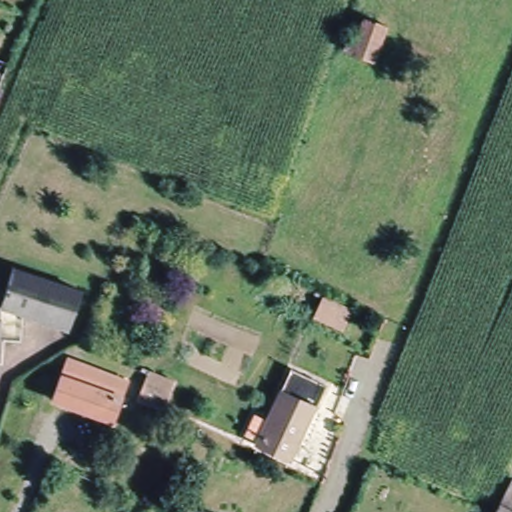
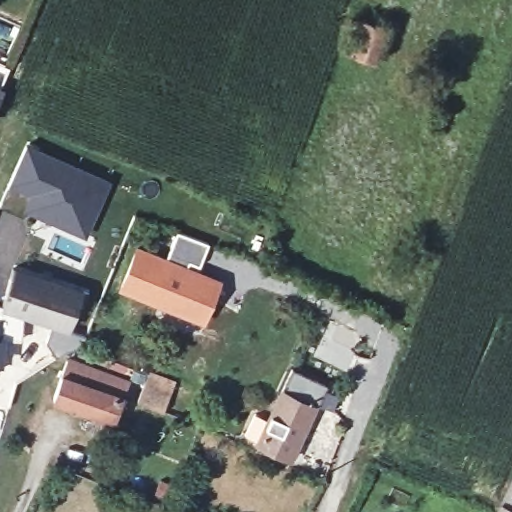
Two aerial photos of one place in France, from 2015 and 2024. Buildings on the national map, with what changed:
unchanged [(369,57),(338,45),(343,33),(351,37),(360,15),(382,23),(369,57)]
unchanged [(0,71),(0,56),(5,59),(0,71)]
new [(69,229),(28,211),(24,217),(0,207),(11,185),(28,147),(110,183),(97,212),(86,237),(69,229)]
new [(136,245),(165,256),(176,230),(210,243),(200,268),(223,277),(204,322),(118,289),(136,245)]
unchanged [(18,313),(17,328),(16,329),(16,340),(0,338),(0,297),(10,268),(76,292),(63,330),(18,313)]
unchanged [(351,311),(343,328),(316,317),(318,311),(299,302),(302,293),(322,302),(324,299),(351,311)]
unchanged [(53,401),(66,361),(128,382),(115,422),(109,438),(87,431),(92,415),(53,401)]
unchanged [(290,459),(257,444),(292,371),(325,386),(290,459)]
unchanged [(162,411),(138,401),(149,372),(173,382),(162,411)]
unchanged [(498,512),(512,481),(512,512),(498,512)]
unchanged [(204,512),(199,512),(199,511),(204,512)]

